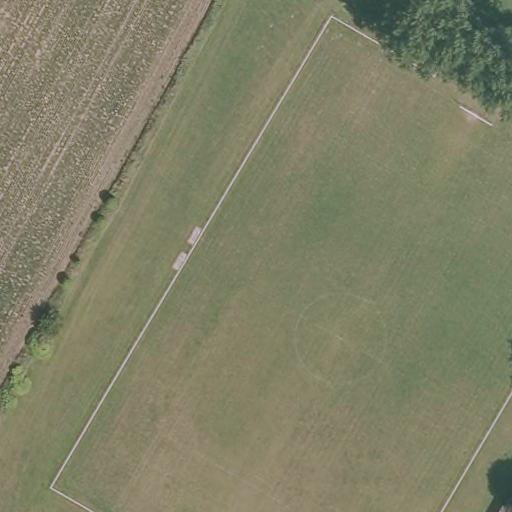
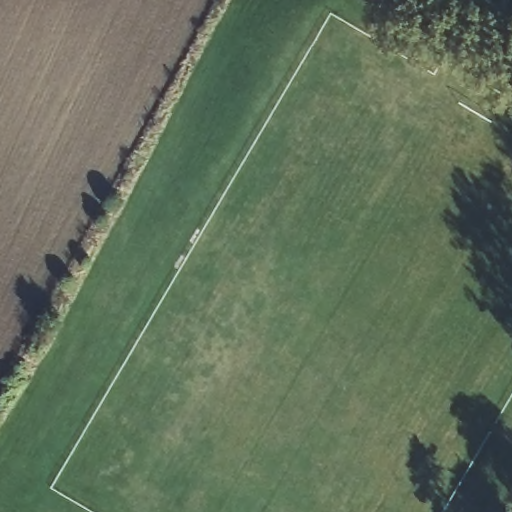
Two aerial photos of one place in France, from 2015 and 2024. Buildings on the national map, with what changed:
unchanged [(512,508),(512,512),(510,512),(512,508)]

